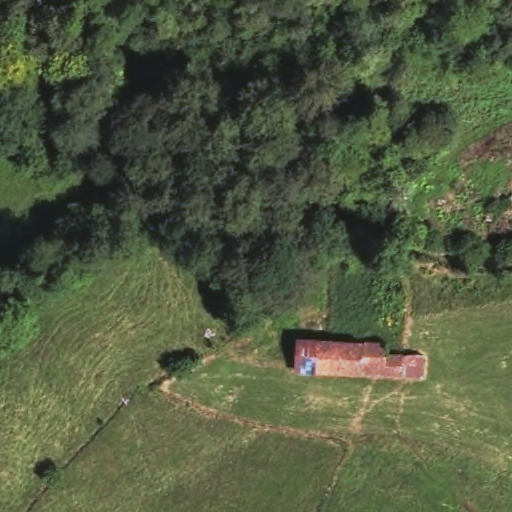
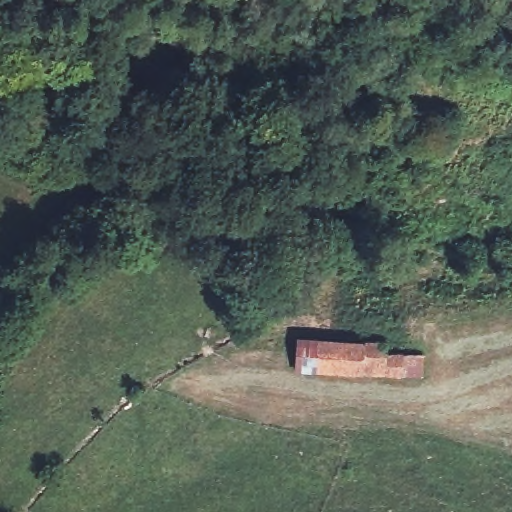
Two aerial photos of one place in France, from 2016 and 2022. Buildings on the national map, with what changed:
unchanged [(423,348),(421,379),(295,373),(295,337),(423,348)]

